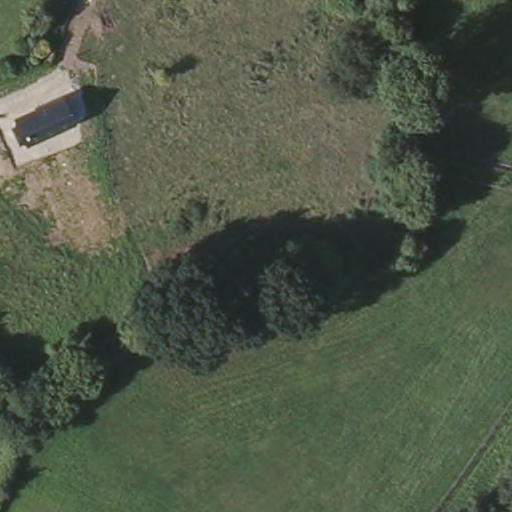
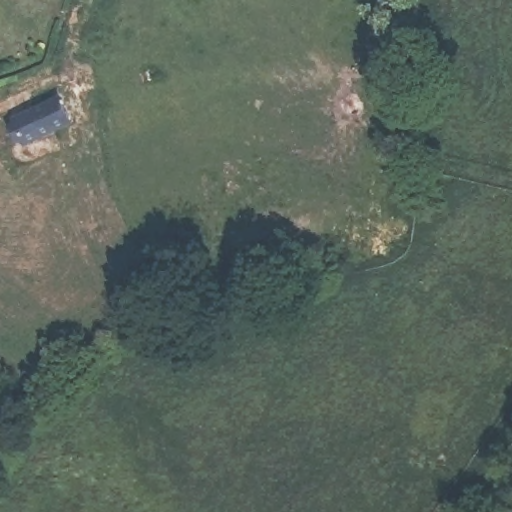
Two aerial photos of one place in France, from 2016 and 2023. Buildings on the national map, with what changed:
unchanged [(119,84),(107,84),(106,74),(118,73),(119,84)]
unchanged [(70,114),(26,135),(19,120),(62,100),(70,114)]

